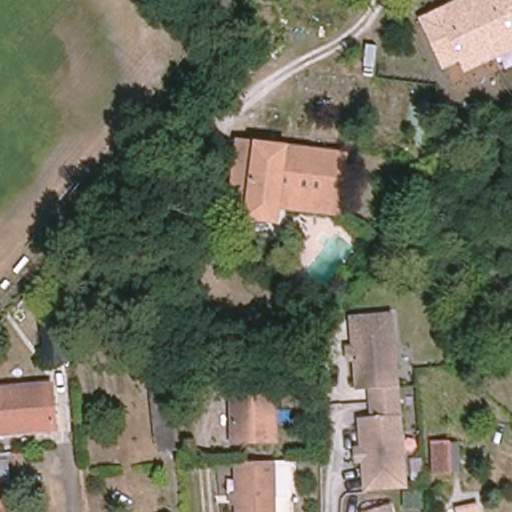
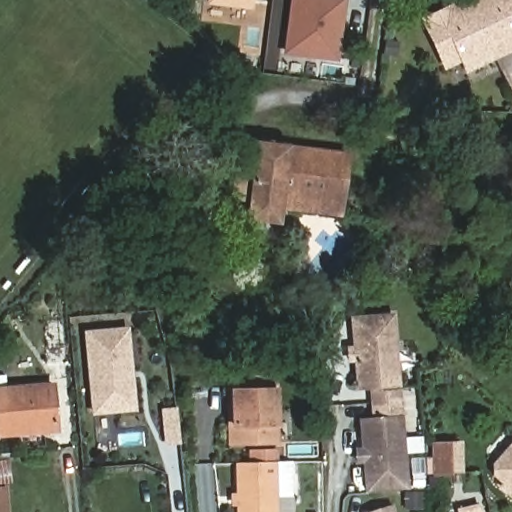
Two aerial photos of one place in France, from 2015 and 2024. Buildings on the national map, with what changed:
new [(206,0),(253,0),(252,11),(206,5),(206,0)]
demolished [(212,0),(233,0),(229,14),(210,8),(212,0)]
new [(284,54),(291,0),(346,0),(338,62),(284,54)]
unchanged [(466,73),(460,62),(443,70),(418,18),(456,0),(512,0),(512,51),(466,73)]
unchanged [(220,86),(230,95),(214,115),(203,107),(220,86)]
unchanged [(250,202),(233,200),(241,142),(348,155),(340,215),(283,208),(280,223),(248,219),(250,202)]
unchanged [(401,396),(374,398),(373,381),(360,382),(359,352),(352,353),(352,341),(358,341),(357,312),(397,310),(401,396)]
unchanged [(59,322),(63,363),(43,365),(40,324),(59,322)]
new [(129,408),(89,410),(84,332),(124,329),(126,370),(126,379),(129,408)]
unchanged [(57,430),(0,434),(0,391),(54,387),(57,430)]
unchanged [(280,390),(281,444),(238,445),(236,391),(280,390)]
demolished [(171,394),(177,452),(161,453),(156,395),(171,394)]
unchanged [(357,445),(364,444),(362,415),(375,414),(374,398),(401,396),(406,482),(381,484),(366,484),(364,456),(358,456),(357,445)]
new [(495,478),(494,464),(512,442),(512,493),(495,478)]
unchanged [(434,444),(450,444),(460,444),(461,474),(451,474),(435,474),(434,444)]
unchanged [(12,477),(0,478),(0,460),(11,459),(12,477)]
unchanged [(232,494),(231,465),(285,463),(286,498),(267,499),(267,512),(233,512),(233,507),(225,507),(225,494),(232,494)]
unchanged [(0,512),(0,487),(8,487),(10,512),(0,512)]
unchanged [(394,503),(397,512),(368,512),(368,511),(394,503)]

